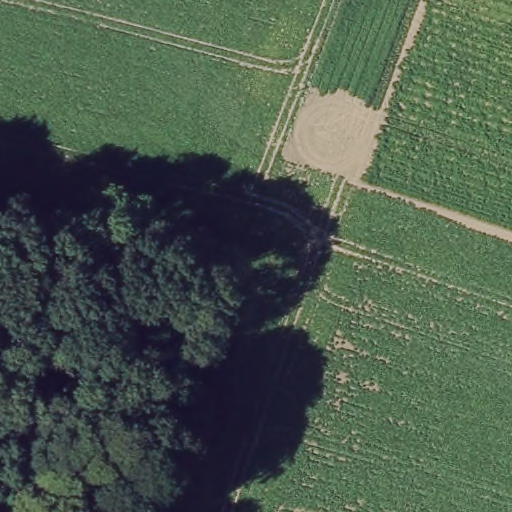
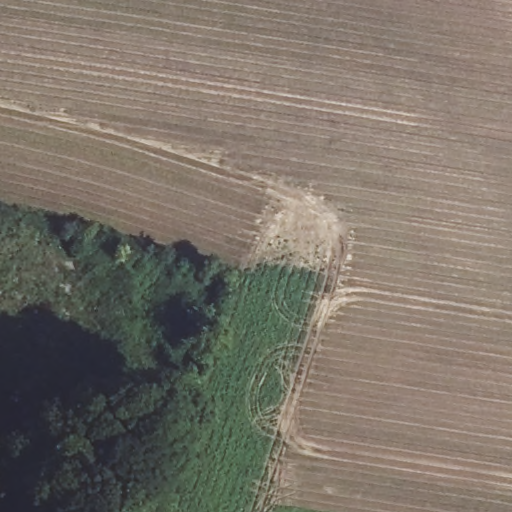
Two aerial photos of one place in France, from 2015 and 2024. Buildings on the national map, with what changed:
[]

